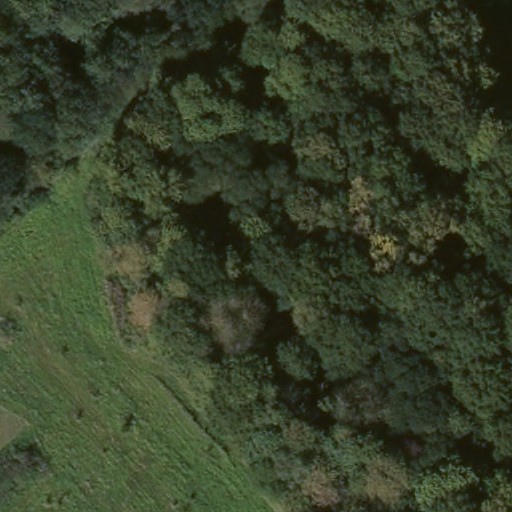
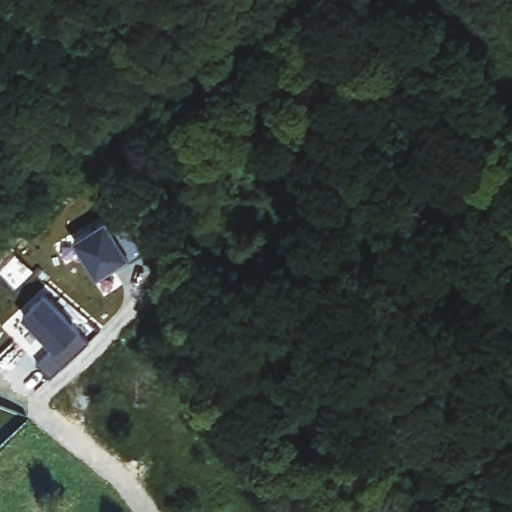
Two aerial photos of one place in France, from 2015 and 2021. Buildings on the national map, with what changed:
new [(105,224),(112,235),(125,227),(144,258),(129,266),(127,262),(96,281),(74,243),(105,224)]
new [(44,296),(89,343),(49,380),(35,365),(53,348),(23,317),(44,296)]

